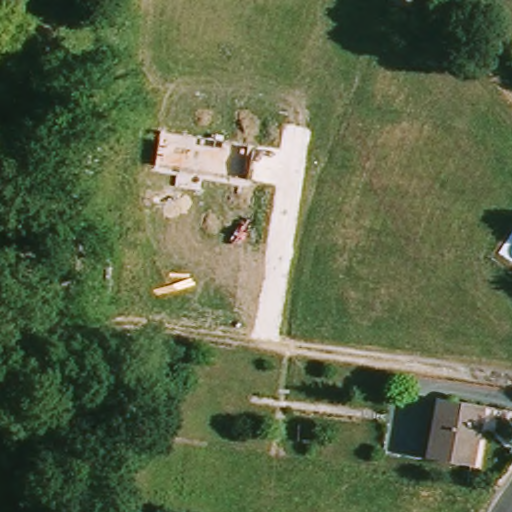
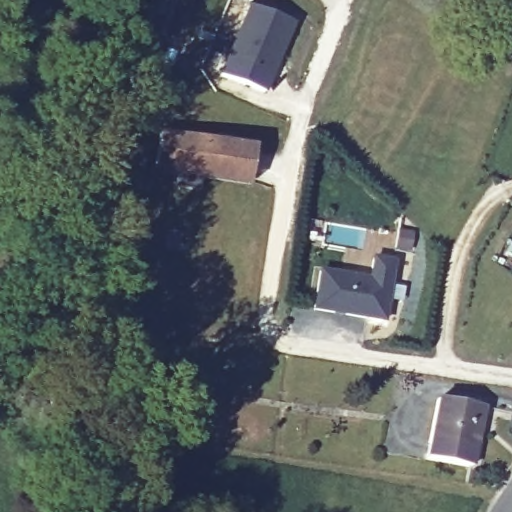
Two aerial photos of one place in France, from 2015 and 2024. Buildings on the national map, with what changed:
new [(247,2),(294,22),(265,91),(217,71),(247,2)]
unchanged [(247,182),(156,168),(161,132),(252,147),(247,182)]
new [(397,258),(387,322),(312,311),(318,268),(369,275),(371,255),(397,258)]
unchanged [(427,457),(438,399),(476,406),(482,407),(478,427),(471,466),(427,457)]

